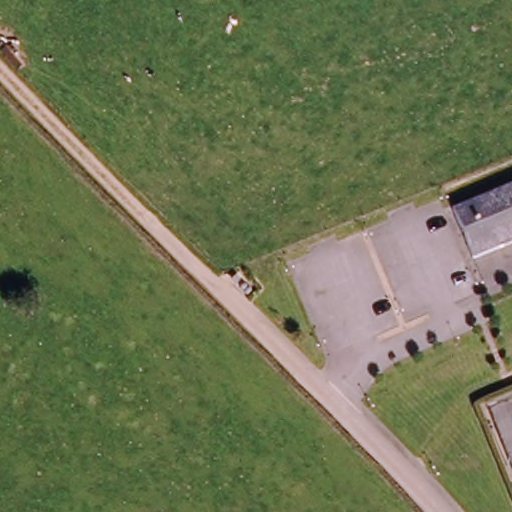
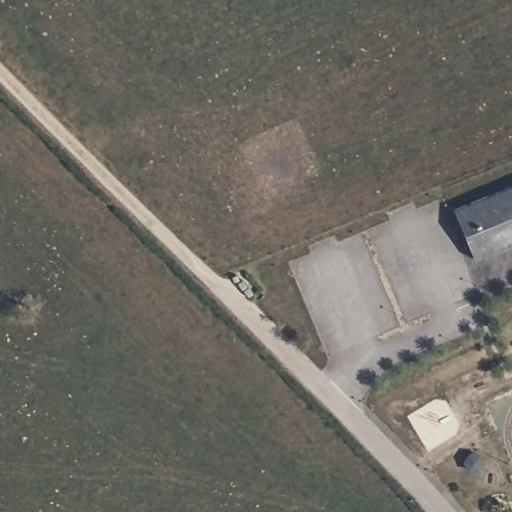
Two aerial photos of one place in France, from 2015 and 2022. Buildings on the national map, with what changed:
unchanged [(476,256),(454,208),(512,183),(512,240),(476,256)]

